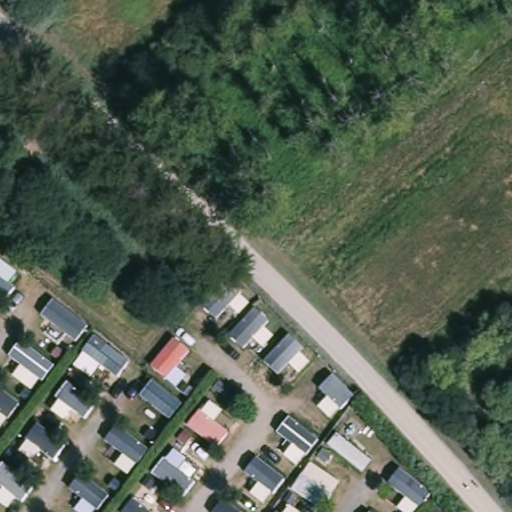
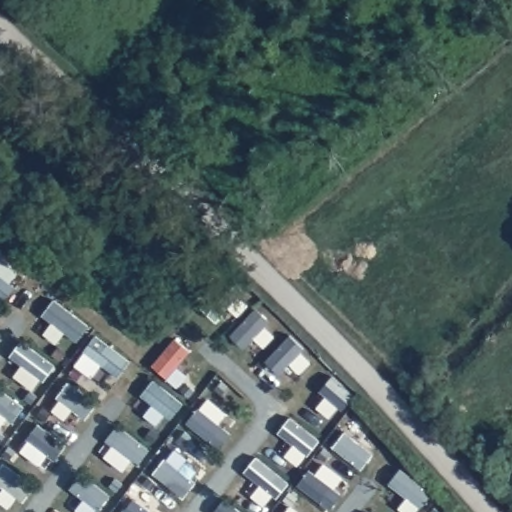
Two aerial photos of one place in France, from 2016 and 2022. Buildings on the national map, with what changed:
[]

